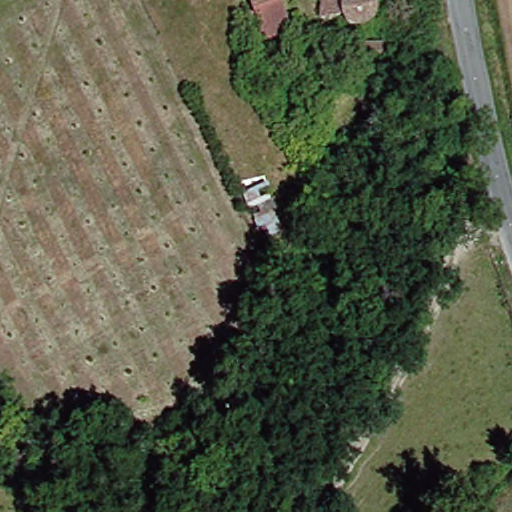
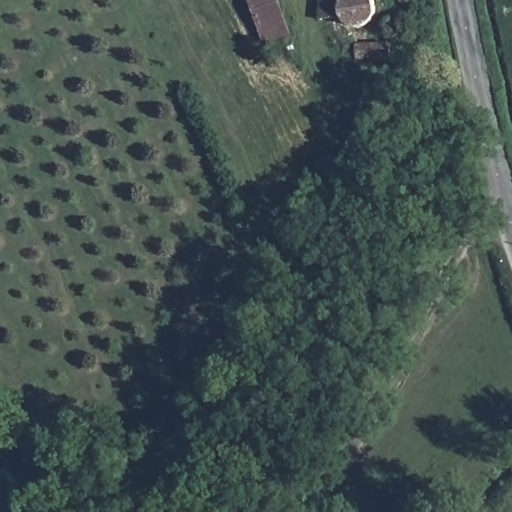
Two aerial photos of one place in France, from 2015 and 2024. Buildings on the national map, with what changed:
unchanged [(260,45),(246,0),(272,0),(284,35),(260,45)]
unchanged [(352,29),(345,21),(345,17),(315,19),(317,0),(381,0),(382,4),(382,17),(375,26),(365,30),(352,29)]
unchanged [(353,57),(353,42),(391,45),(390,58),(353,57)]
unchanged [(269,190),(273,211),(287,237),(265,247),(246,220),(240,200),(269,190)]

